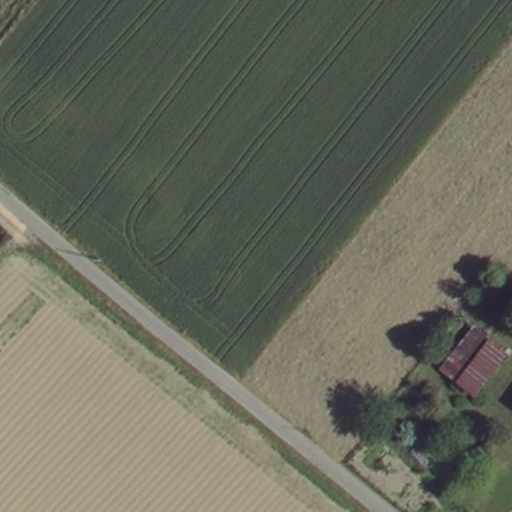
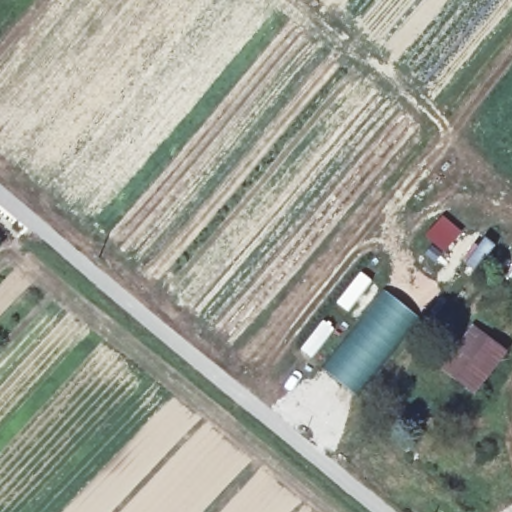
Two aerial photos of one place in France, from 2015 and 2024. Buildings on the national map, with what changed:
new [(442,215),(461,231),(443,252),(424,235),(442,215)]
new [(361,271),(372,281),(347,312),(335,303),(361,271)]
new [(382,288),(420,318),(357,396),(321,367),(382,288)]
new [(324,319),(336,329),(311,359),(299,349),(324,319)]
unchanged [(508,356),(481,394),(447,369),(475,332),(508,356)]

